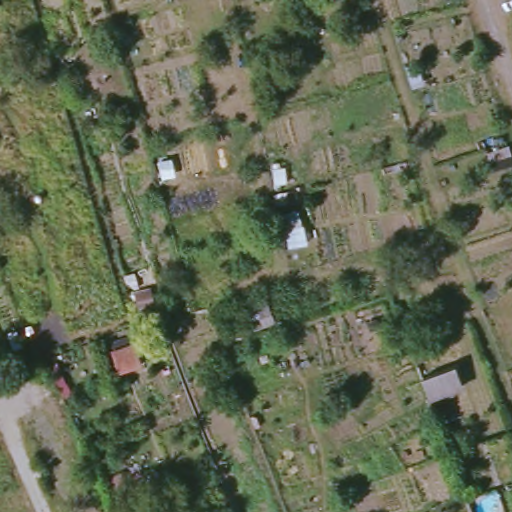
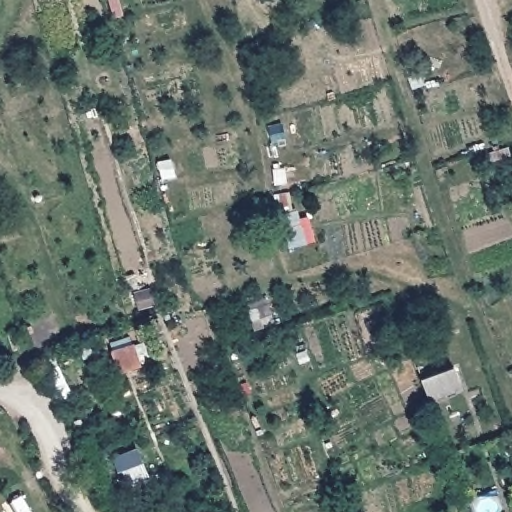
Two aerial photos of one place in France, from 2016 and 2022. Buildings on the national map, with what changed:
unchanged [(265,294),(275,319),(252,328),(242,303),(265,294)]
unchanged [(135,345),(141,364),(120,372),(114,352),(135,345)]
unchanged [(462,388),(430,399),(422,379),(455,368),(462,388)]

